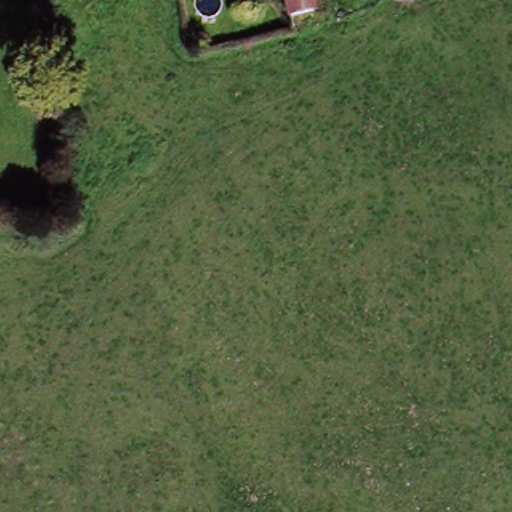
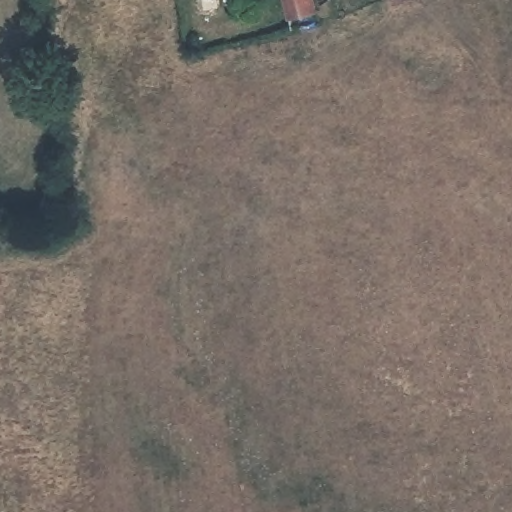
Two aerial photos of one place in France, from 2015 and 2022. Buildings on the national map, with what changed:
unchanged [(319,29),(294,34),(286,0),(312,0),(319,29)]

